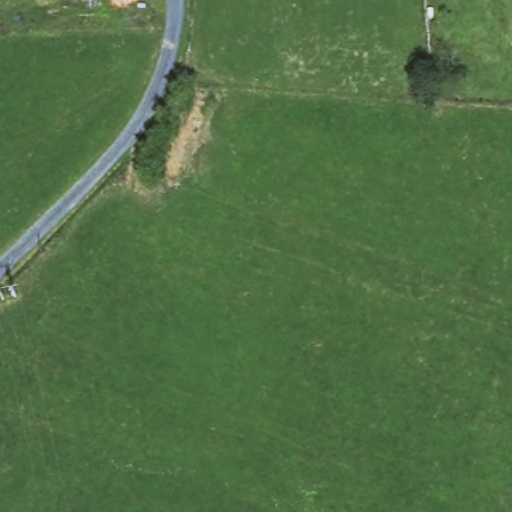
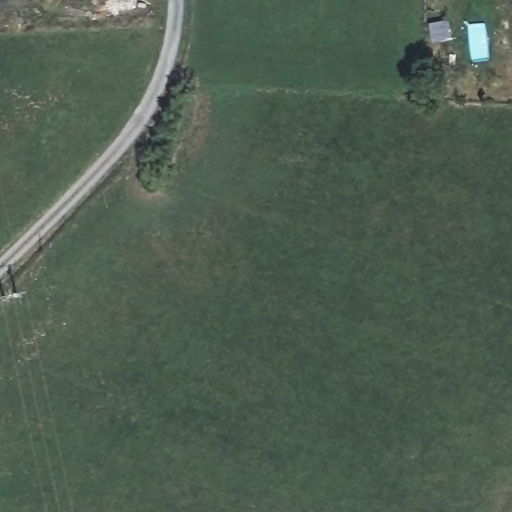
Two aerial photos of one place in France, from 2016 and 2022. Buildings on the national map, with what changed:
[]

